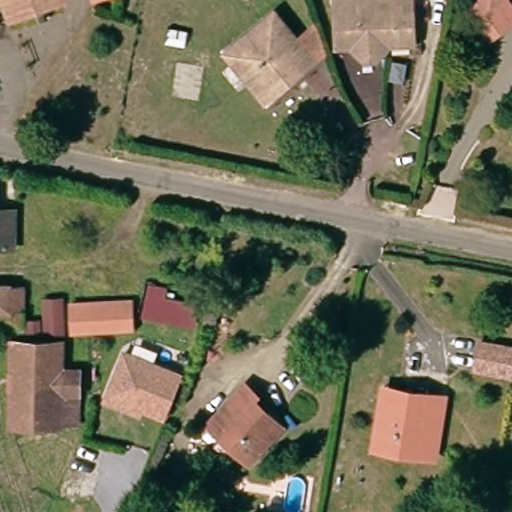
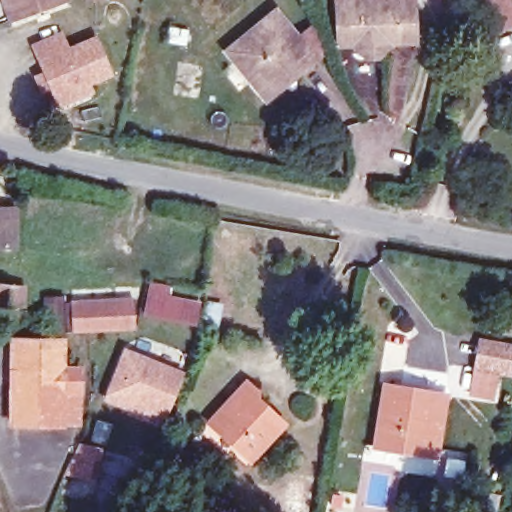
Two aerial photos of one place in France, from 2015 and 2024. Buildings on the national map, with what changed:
unchanged [(15,15),(9,0),(58,0),(15,15)]
unchanged [(97,1),(96,0),(101,0),(97,1)]
unchanged [(412,42),(388,42),(382,51),(357,52),(351,45),(336,47),(335,0),(410,0),(412,42)]
unchanged [(478,0),(509,0),(512,5),(512,22),(489,37),(469,6),(478,0)]
unchanged [(299,37),(315,25),(326,55),(258,102),(223,53),(275,9),(299,37)]
new [(69,46),(95,35),(113,75),(91,85),(95,92),(70,104),(63,89),(51,94),(50,91),(41,95),(33,75),(42,72),(29,45),(62,31),(69,46)]
unchanged [(17,206),(16,243),(0,243),(0,206),(17,206)]
unchanged [(11,285),(24,285),(25,328),(12,329),(0,329),(0,286),(11,285)]
unchanged [(152,317),(158,290),(171,292),(169,301),(201,307),(198,326),(152,317)]
unchanged [(68,330),(52,330),(50,299),(67,298),(68,330)]
unchanged [(139,329),(97,330),(79,331),(77,303),(138,300),(139,329)]
unchanged [(45,330),(31,331),(31,321),(44,321),(45,330)]
unchanged [(62,423),(17,423),(17,341),(66,341),(66,369),(81,369),(81,393),(81,423),(62,423)]
unchanged [(512,350),(512,373),(479,368),(483,345),(512,350)]
unchanged [(161,419),(105,399),(121,354),(180,374),(161,419)]
unchanged [(235,444),(238,440),(213,416),(246,382),(261,396),(257,399),(282,424),(249,458),(235,444)]
unchanged [(402,453),(380,449),(389,397),(391,389),(432,397),(448,400),(439,451),(437,459),(402,453)]
new [(73,450),(95,455),(89,483),(59,477),(73,450)]

